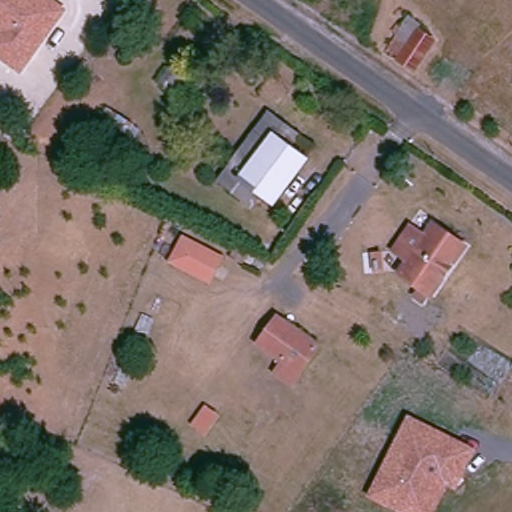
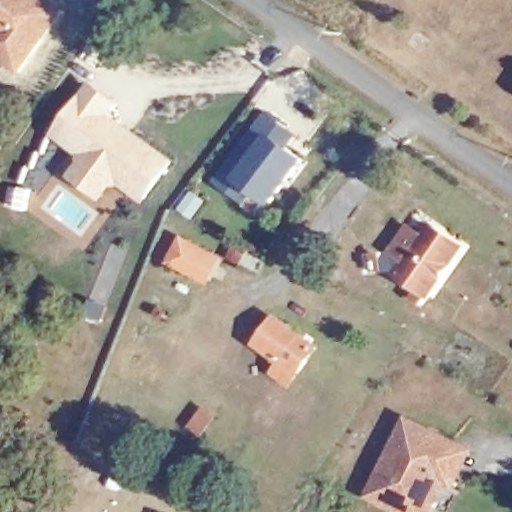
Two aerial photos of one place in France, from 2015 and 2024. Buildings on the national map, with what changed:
unchanged [(0,63),(0,28),(3,24),(0,22),(0,0),(39,0),(50,9),(60,16),(39,45),(17,76),(0,63)]
unchanged [(0,28),(0,22),(3,24),(0,28)]
demolished [(443,36),(422,66),(405,54),(426,24),(443,36)]
demolished [(167,67),(181,76),(170,94),(156,85),(167,67)]
new [(120,102),(113,114),(177,161),(146,205),(120,186),(114,187),(102,202),(70,177),(78,165),(80,156),(51,135),(90,81),(120,102)]
unchanged [(320,151),(288,194),(270,181),(255,170),(247,182),(234,172),(282,106),(295,116),(287,127),(302,138),(320,151)]
demolished [(117,155),(100,145),(116,116),(134,126),(117,155)]
unchanged [(433,303),(421,294),(428,284),(408,270),(417,257),(410,252),(402,247),(419,223),(426,228),(433,233),(442,221),(474,243),(440,292),(433,303)]
unchanged [(218,261),(207,283),(171,266),(182,243),(218,261)]
unchanged [(298,383),(281,372),(290,360),(265,343),(282,318),(323,346),(298,383)]
unchanged [(390,508),(371,497),(409,421),(427,430),(471,452),(460,475),(453,488),(444,484),(430,512),(399,512),(390,508)]

